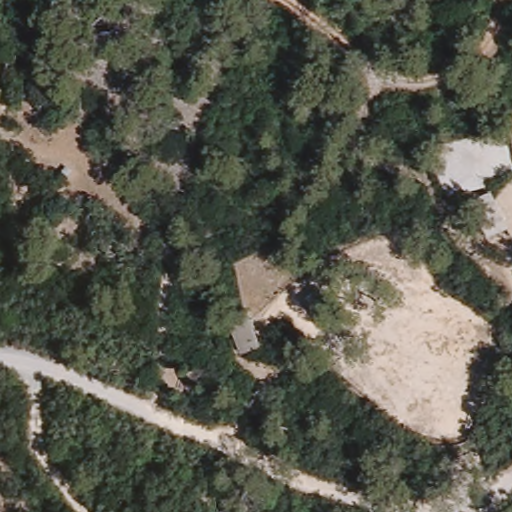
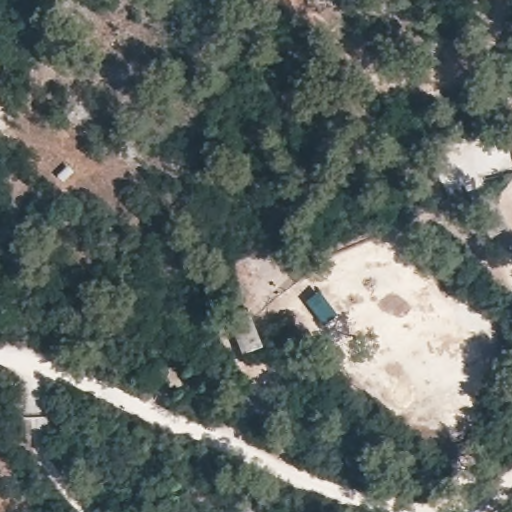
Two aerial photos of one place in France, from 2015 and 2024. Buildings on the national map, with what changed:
unchanged [(471,202),(492,192),(508,229),(490,237),(471,202)]
unchanged [(324,327),(302,300),(320,287),(341,315),(330,322),(324,327)]
unchanged [(242,353),(227,317),(248,309),(262,346),(242,353)]

